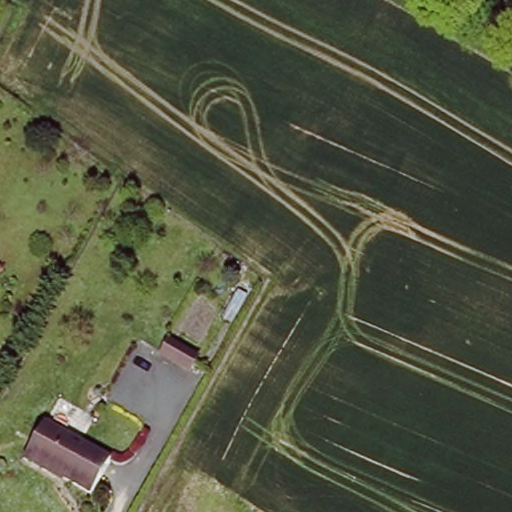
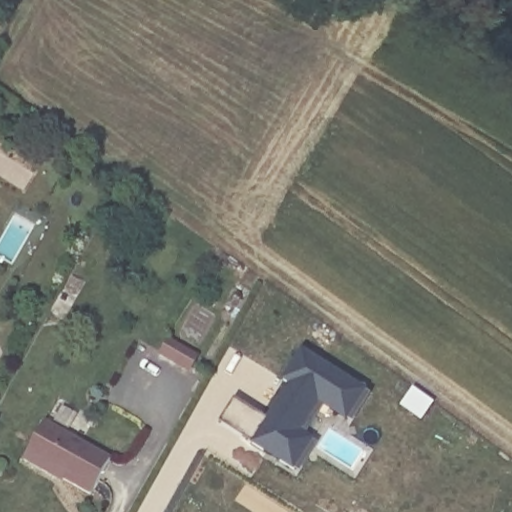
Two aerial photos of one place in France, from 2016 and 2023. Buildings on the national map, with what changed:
new [(163,355),(168,347),(200,364),(190,381),(159,364),(163,355)]
new [(352,424),(323,408),(307,435),(319,443),(299,474),(254,444),(220,423),(235,398),(268,418),(289,386),(282,383),(303,348),(372,394),(352,424)]
unchanged [(115,457),(97,491),(55,467),(53,470),(29,458),(50,421),(77,435),(115,457)]

